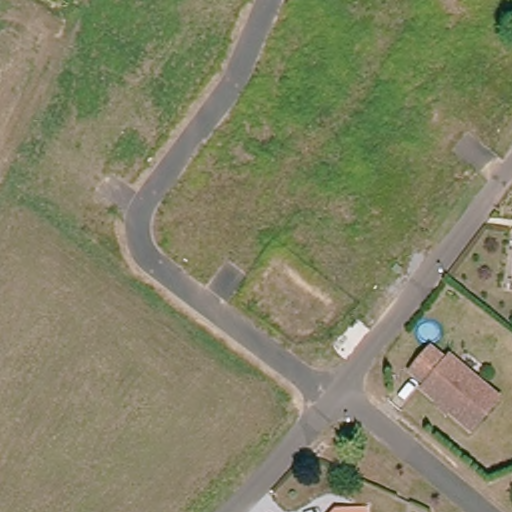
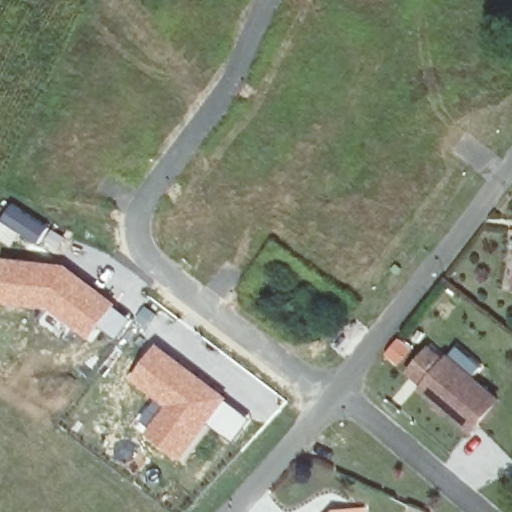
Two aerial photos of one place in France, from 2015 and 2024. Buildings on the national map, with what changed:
new [(12,201),(65,235),(56,249),(41,237),(36,243),(22,233),(13,246),(0,237),(0,217),(1,218),(12,201)]
new [(6,255),(65,262),(105,292),(133,318),(116,338),(101,325),(88,340),(49,308),(1,302),(6,255)]
new [(234,441),(211,424),(183,460),(147,432),(166,405),(134,378),(160,343),(230,398),(252,416),(234,441)]
unchanged [(478,431),(426,386),(429,382),(416,370),(432,349),(447,362),(450,359),(460,346),(477,361),(468,373),(502,401),(478,431)]
unchanged [(367,504),(367,512),(339,512),(367,504)]

